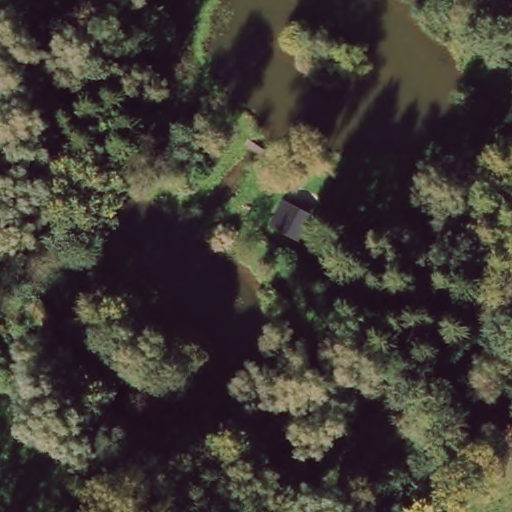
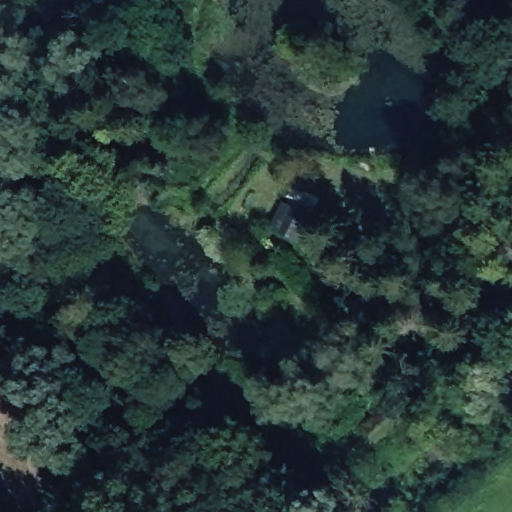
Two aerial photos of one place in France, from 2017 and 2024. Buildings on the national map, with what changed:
unchanged [(50,326),(18,289),(28,280),(59,316),(50,326)]

